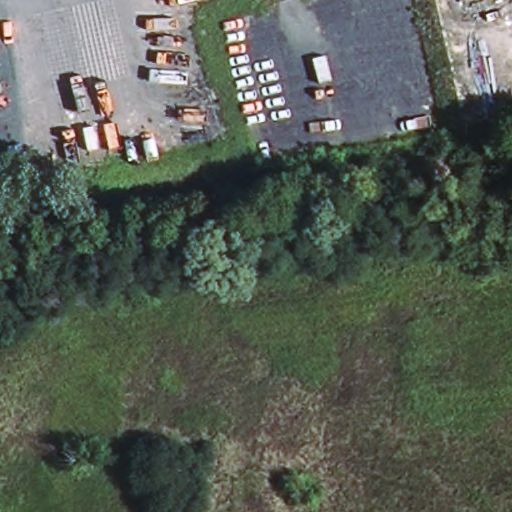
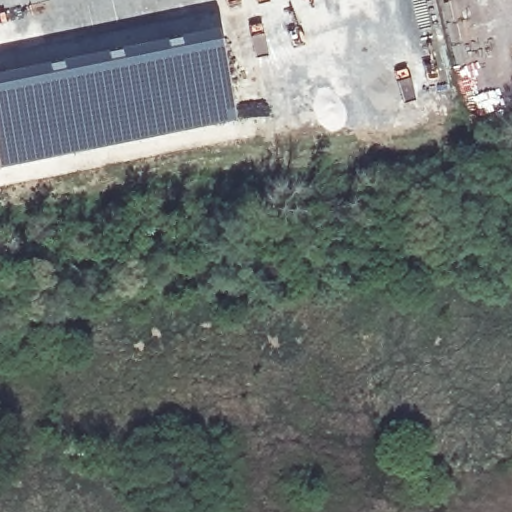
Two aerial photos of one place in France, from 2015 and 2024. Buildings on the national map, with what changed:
new [(39,65),(138,45),(141,52),(158,49),(156,43),(212,30),(232,124),(0,169),(0,73),(39,65)]

